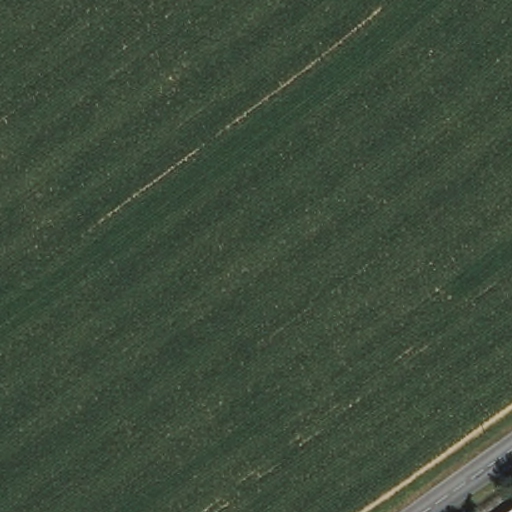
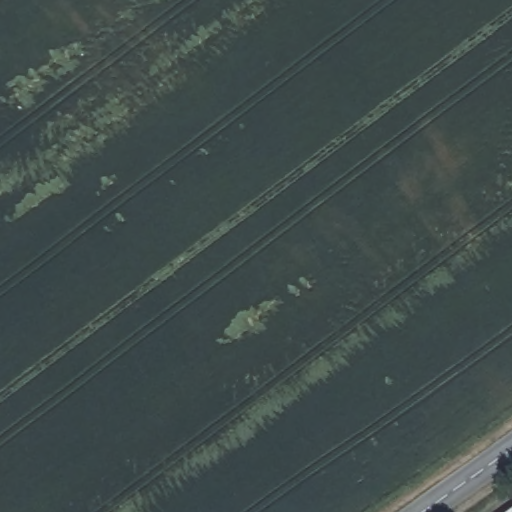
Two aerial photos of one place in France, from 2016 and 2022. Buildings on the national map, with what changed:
[]

